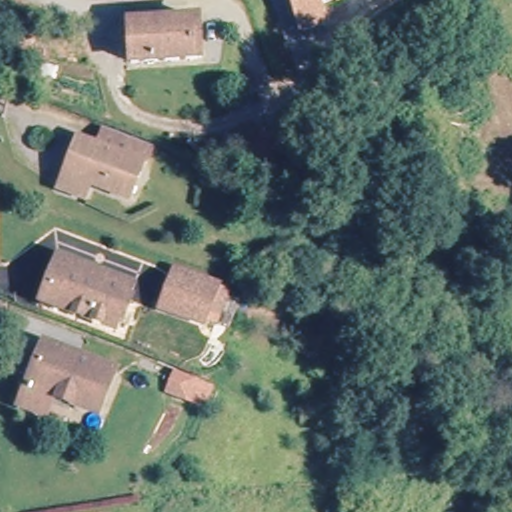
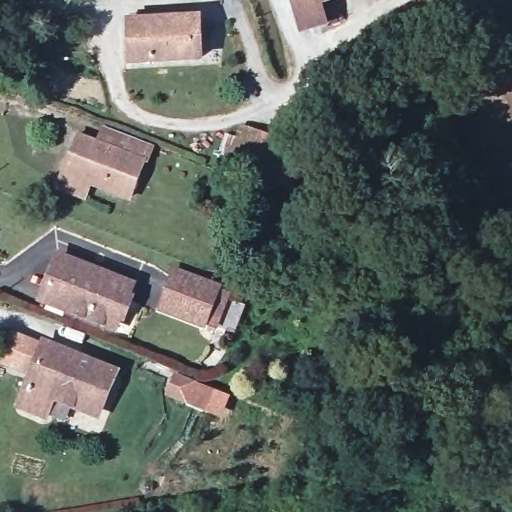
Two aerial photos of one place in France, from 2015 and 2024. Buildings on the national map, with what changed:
unchanged [(343,0),(327,5),(330,26),(300,35),(291,0),(343,0)]
unchanged [(131,60),(130,19),(200,18),(202,59),(131,60)]
unchanged [(265,182),(232,165),(235,158),(249,121),(278,133),(265,182)]
unchanged [(141,197),(95,180),(90,194),(57,182),(72,136),(122,154),(131,130),(160,143),(141,197)]
unchanged [(44,295),(58,257),(139,288),(126,325),(44,295)]
unchanged [(216,328),(169,312),(182,270),(227,298),(216,328)]
unchanged [(59,394),(51,416),(24,405),(47,346),(120,374),(106,412),(59,394)]
new [(230,396),(221,419),(165,396),(174,373),(230,396)]

